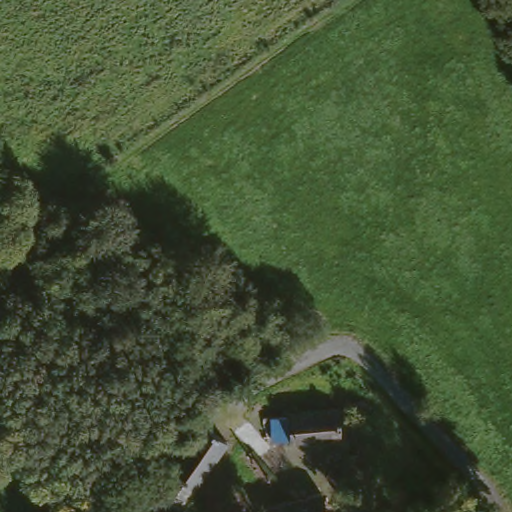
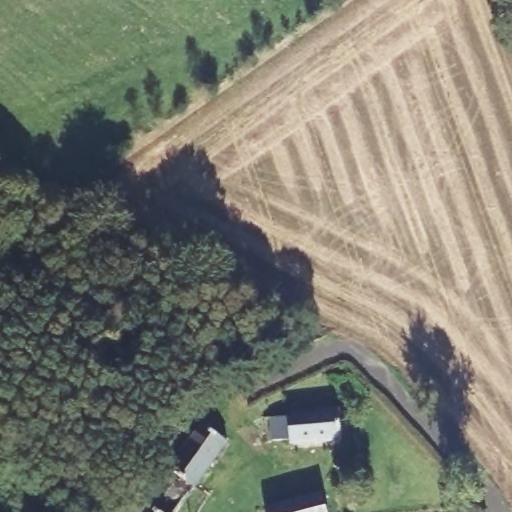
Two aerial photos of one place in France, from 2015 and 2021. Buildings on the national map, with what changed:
unchanged [(299,446),(297,412),(345,408),(346,442),(299,446)]
unchanged [(200,478),(177,463),(176,462),(209,417),(235,431),(237,434),(238,435),(205,482),(200,478)]
unchanged [(177,463),(200,478),(205,482),(201,487),(183,512),(140,512),(176,462),(177,463)]
unchanged [(300,497),(328,489),(334,512),(275,512),(273,505),(300,497)]

